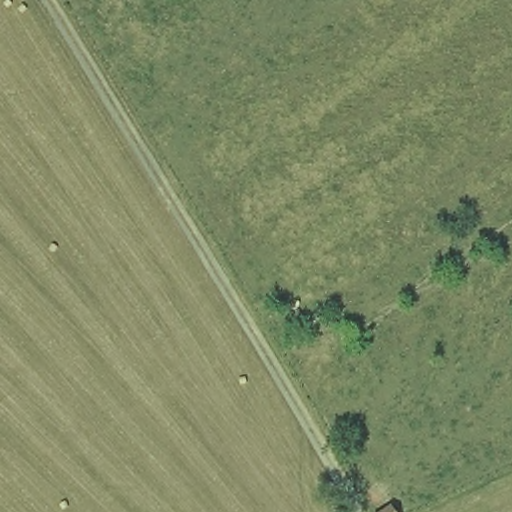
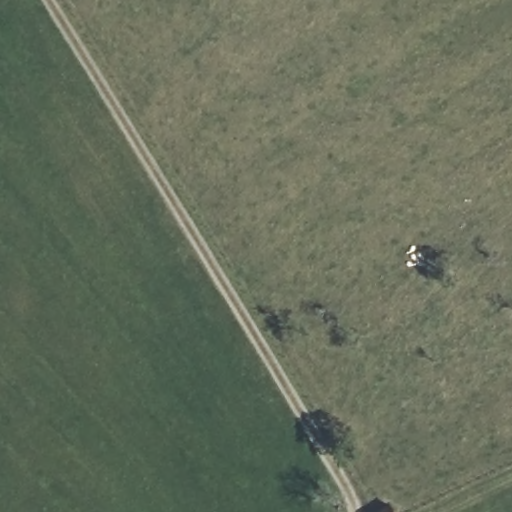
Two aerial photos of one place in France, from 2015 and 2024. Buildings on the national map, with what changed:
unchanged [(395,512),(371,512),(368,506),(389,495),(398,510),(395,512)]

